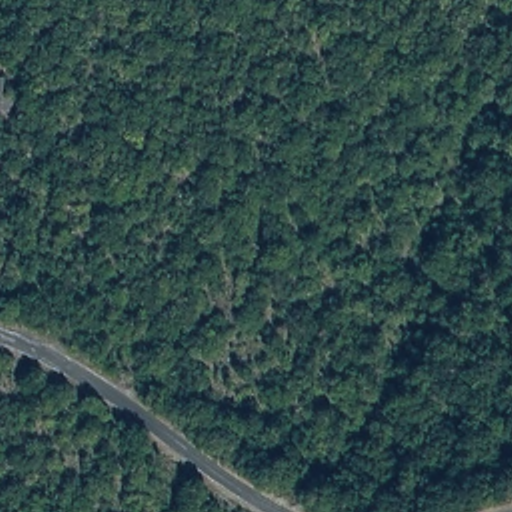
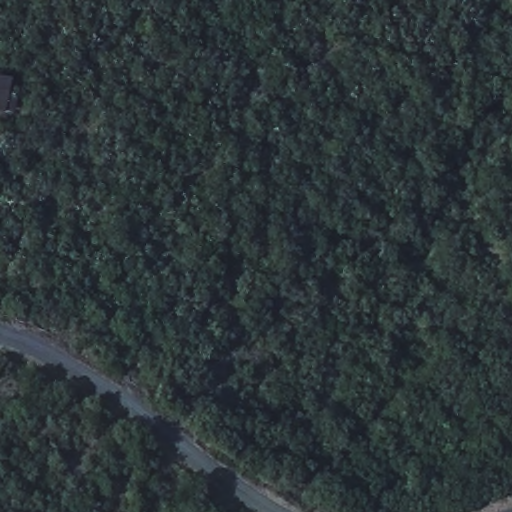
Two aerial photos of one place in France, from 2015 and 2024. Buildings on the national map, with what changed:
unchanged [(7,112),(0,110),(0,78),(12,81),(7,112)]

